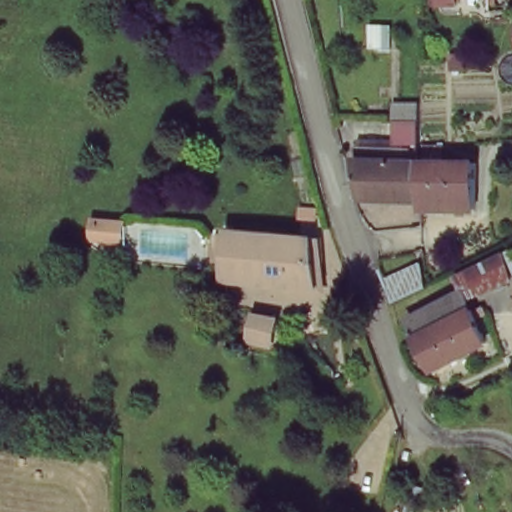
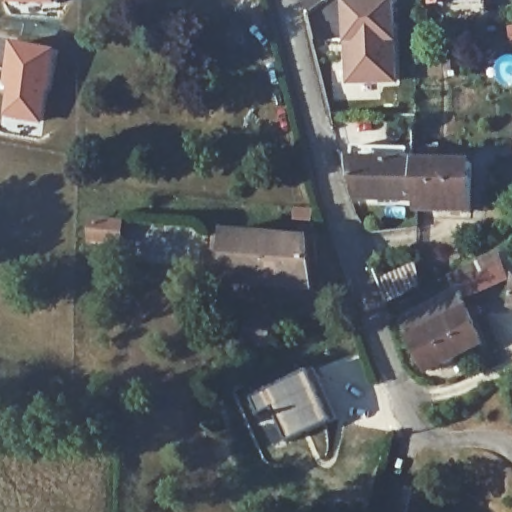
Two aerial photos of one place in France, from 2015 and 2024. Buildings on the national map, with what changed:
new [(10,4),(9,0),(59,0),(59,5),(10,4)]
new [(399,83),(347,85),(346,44),(345,0),(396,0),(397,41),(399,83)]
unchanged [(451,0),(483,0),(484,1),(452,1),(451,0)]
new [(12,41),(59,50),(42,124),(4,118),(12,41)]
unchanged [(467,168),(465,216),(414,214),(413,206),(356,204),(350,165),(352,165),(352,152),(389,153),(393,153),(396,154),(399,154),(403,154),(406,154),(409,154),(412,154),(412,166),(415,166),(414,153),(435,153),(435,167),(459,168),(467,168)]
unchanged [(281,276),(224,271),(225,251),(216,251),(217,237),(225,238),(226,232),(311,239),(317,239),(318,265),(313,265),(311,266),(313,287),(291,285),(281,285),(281,276)]
unchanged [(456,277),(502,255),(511,279),(467,299),(462,289),(456,277)]
unchanged [(389,304),(382,280),(417,264),(423,288),(389,304)]
unchanged [(405,319),(462,289),(467,299),(471,311),(469,312),(415,338),(405,319)]
unchanged [(469,312),(471,311),(483,343),(430,370),(415,338),(469,312)]
unchanged [(271,320),(266,344),(246,340),(251,316),(271,320)]
new [(256,418),(247,398),(308,371),(332,422),(287,442),(268,449),(256,418)]
unchanged [(410,494),(426,496),(423,512),(407,512),(410,494)]

